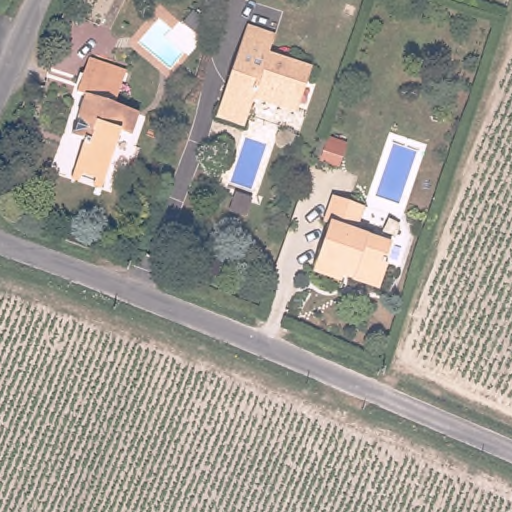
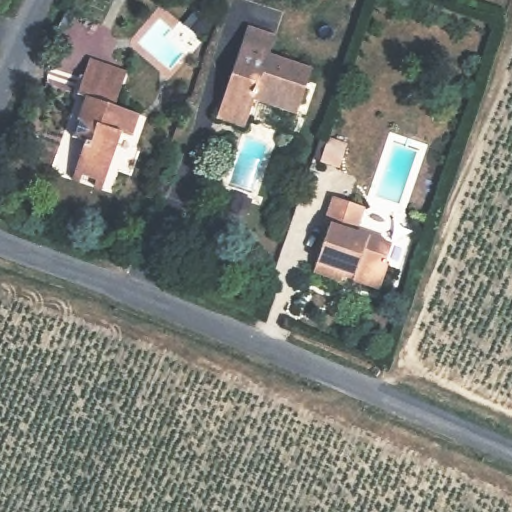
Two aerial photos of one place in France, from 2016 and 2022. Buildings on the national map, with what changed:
unchanged [(252,103),(246,124),(219,114),(249,29),(275,39),(269,56),(313,72),(297,119),(252,103)]
unchanged [(74,186),(78,169),(85,172),(91,151),(75,144),(88,105),(79,101),(88,77),(92,63),(131,78),(126,90),(119,116),(141,125),(135,144),(125,140),(111,181),(105,198),(74,186)]
unchanged [(349,270),(345,281),(320,270),(336,227),(332,225),(342,199),(370,209),(360,237),(396,250),(390,269),(392,269),(386,289),(357,278),(358,274),(349,270)]

